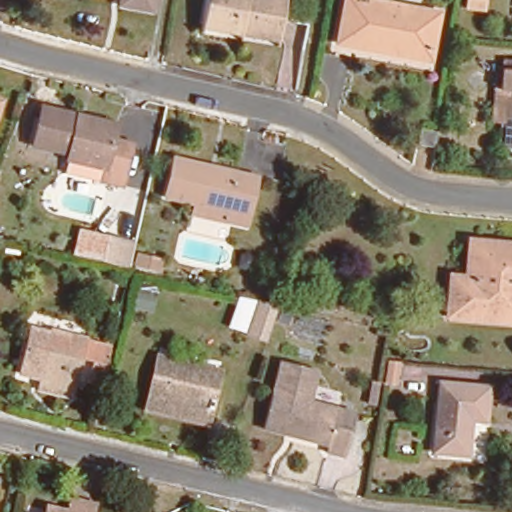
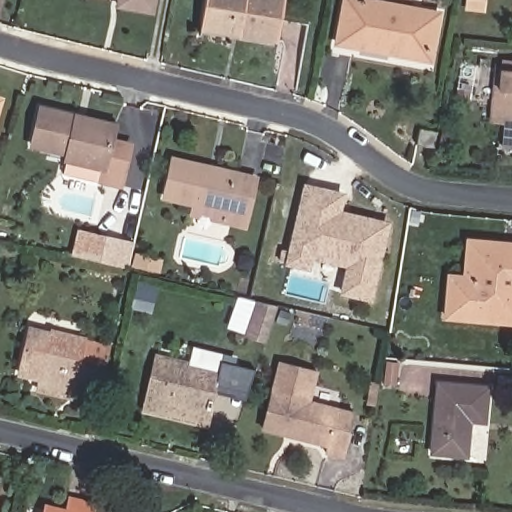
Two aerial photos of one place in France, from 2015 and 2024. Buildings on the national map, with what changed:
unchanged [(151,11),(118,5),(119,0),(154,0),(151,11)]
unchanged [(277,41),(201,28),(206,0),(285,0),(277,41)]
unchanged [(394,55),(337,43),(345,0),(370,0),(440,14),(432,53),(431,62),(394,55)]
unchanged [(466,9),(466,4),(467,0),(484,0),(483,6),(482,10),(466,9)]
unchanged [(508,156),(510,134),(506,133),(490,132),(495,79),(500,79),(501,69),(512,70),(512,156),(508,156)]
unchanged [(128,146),(120,183),(104,179),(105,170),(67,161),(69,156),(32,147),(41,107),(78,116),(116,126),(114,134),(112,142),(128,146)]
unchanged [(416,144),(420,129),(436,132),(433,148),(416,144)]
unchanged [(256,178),(245,227),(191,215),(194,204),(165,198),(174,160),(256,178)]
new [(307,272),(283,265),(302,182),(345,193),(341,210),(390,222),(372,302),(339,294),(345,266),(311,258),(307,272)]
unchanged [(153,268),(126,262),(125,266),(100,260),(105,241),(130,246),(130,249),(156,255),(153,268)]
unchanged [(446,303),(448,276),(463,277),(467,241),(512,246),(512,322),(483,320),(445,318),(446,303)]
new [(267,338),(248,334),(230,329),(237,295),(256,300),(275,304),(267,338)]
unchanged [(90,361),(80,359),(71,391),(40,383),(40,381),(16,376),(27,327),(52,333),(84,340),(111,346),(106,365),(102,386),(85,383),(90,361)]
unchanged [(258,425),(275,357),(311,366),(303,397),(350,408),(339,452),(321,448),(323,440),(293,433),(280,430),(258,425)]
unchanged [(397,363),(394,385),(383,384),(386,361),(397,363)]
unchanged [(219,376),(205,429),(144,415),(157,362),(219,376)]
unchanged [(482,394),(479,427),(464,425),(460,461),(426,457),(434,389),(482,394)]
unchanged [(70,494),(94,501),(91,512),(45,512),(47,503),(66,508),(70,494)]

